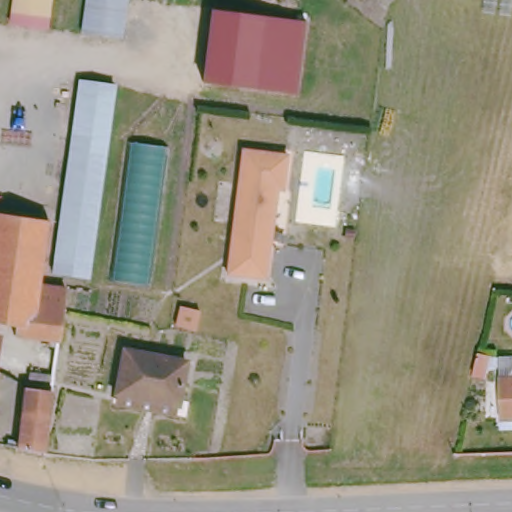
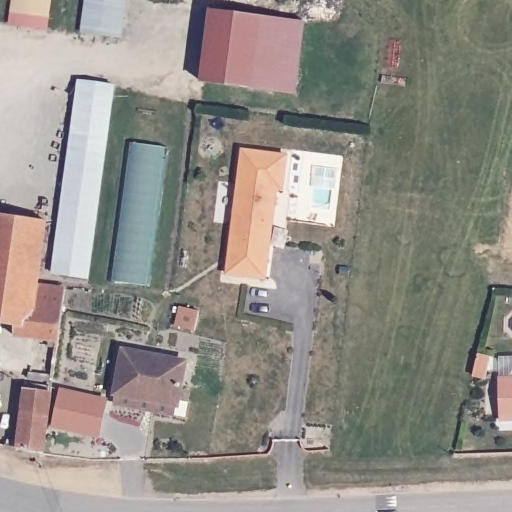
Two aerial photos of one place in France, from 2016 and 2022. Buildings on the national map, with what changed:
unchanged [(11,0),(46,0),(43,29),(8,24),(11,0)]
unchanged [(83,0),(122,0),(118,33),(79,29),(83,0)]
unchanged [(259,16),(306,22),(296,95),(251,89),(203,84),(211,10),(259,16)]
unchanged [(49,274),(73,81),(107,86),(83,279),(49,274)]
unchanged [(149,281),(108,276),(125,138),(166,143),(149,281)]
unchanged [(259,275),(221,269),(236,146),(281,152),(276,186),(271,185),(264,240),(259,275)]
unchanged [(33,283),(58,288),(57,309),(53,340),(9,334),(10,319),(0,316),(0,215),(39,222),(33,283)]
unchanged [(190,315),(210,320),(204,339),(186,334),(190,315)]
unchanged [(149,406),(106,398),(114,354),(151,362),(149,406)]
unchanged [(179,363),(176,409),(149,408),(149,406),(151,362),(179,363)]
unchanged [(512,377),(512,419),(494,419),(493,378),(512,377)]
new [(51,429),(60,388),(106,398),(109,398),(101,438),(51,429)]
unchanged [(19,390),(46,389),(39,452),(13,448),(19,390)]

